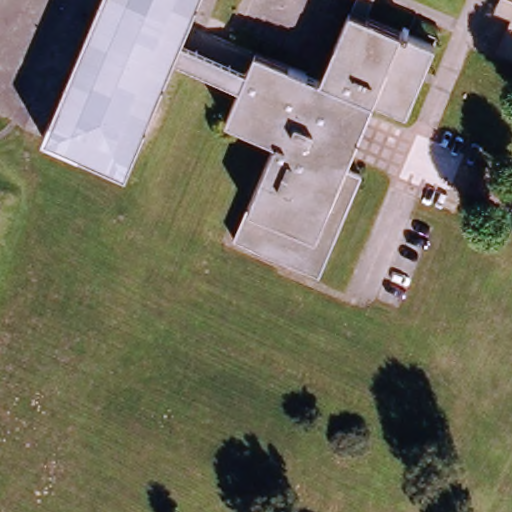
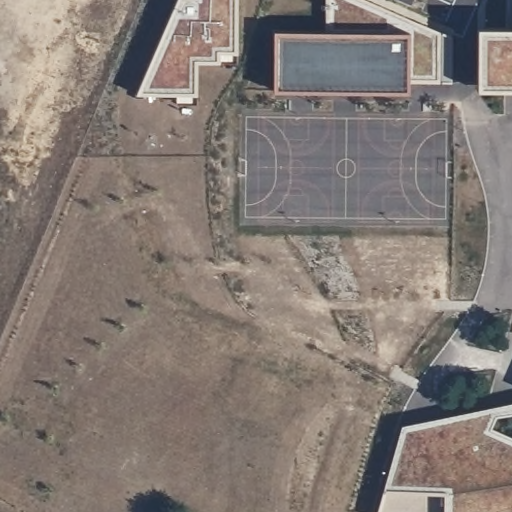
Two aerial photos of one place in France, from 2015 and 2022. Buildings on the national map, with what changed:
demolished [(125,172),(43,137),(100,0),(197,0),(178,44),(172,59),(125,172)]
new [(140,92),(180,0),(234,0),(233,49),(217,50),(217,61),(195,61),(193,93),(140,92)]
new [(407,79),(407,92),(275,91),(276,34),(328,34),(328,0),(361,0),(438,33),(437,80),(407,79)]
new [(478,27),(505,27),(506,0),(512,0),(512,90),(477,90),(478,27)]
demolished [(509,15),(492,8),(496,0),(512,0),(512,56),(495,48),(509,15)]
demolished [(253,55),(320,84),(351,11),(368,18),(438,46),(409,116),(375,102),(366,98),(340,165),(347,168),(363,174),(322,275),(235,240),(275,143),(226,122),(240,88),(247,72),(253,55)]
new [(402,425),(512,403),(512,412),(495,414),(489,426),(512,436),(512,512),(378,512),(384,489),(402,425)]

